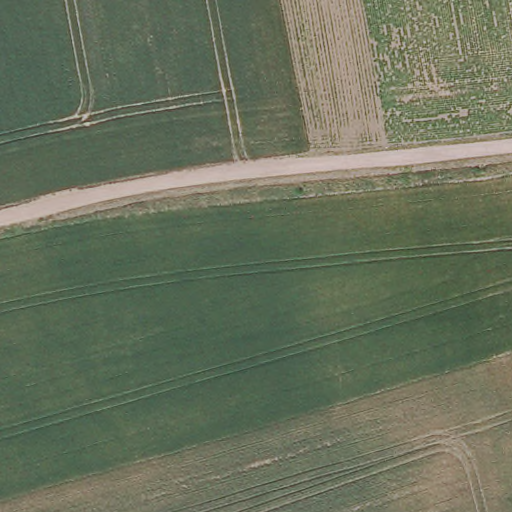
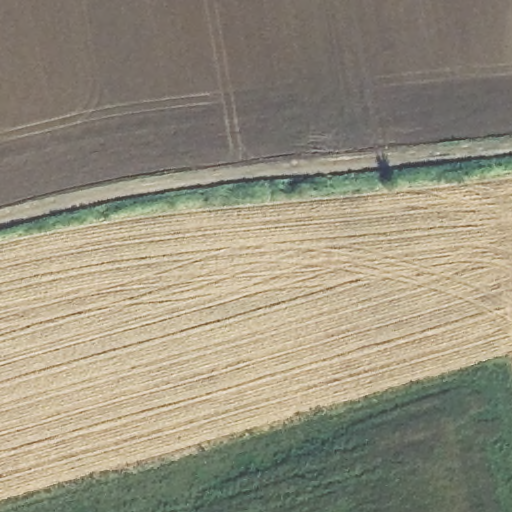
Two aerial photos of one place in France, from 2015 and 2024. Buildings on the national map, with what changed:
[]

